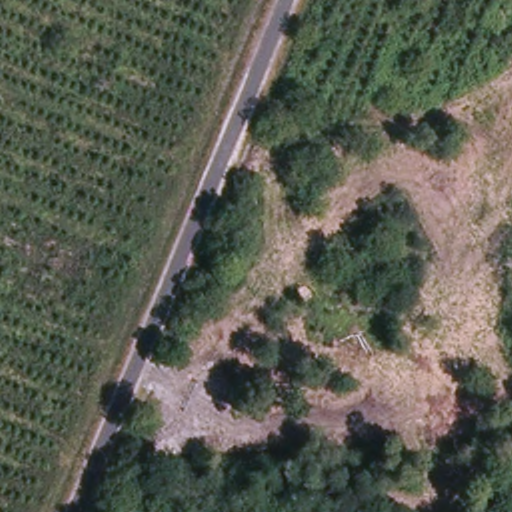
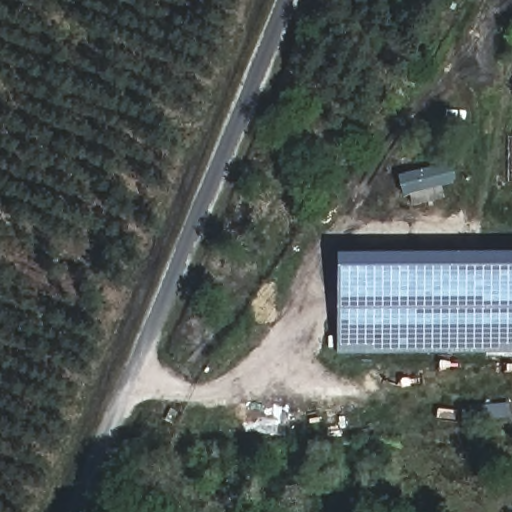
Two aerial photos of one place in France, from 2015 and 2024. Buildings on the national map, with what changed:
new [(457,163),(460,180),(405,191),(402,175),(457,163)]
new [(338,255),(512,255),(512,352),(342,351),(338,255)]

